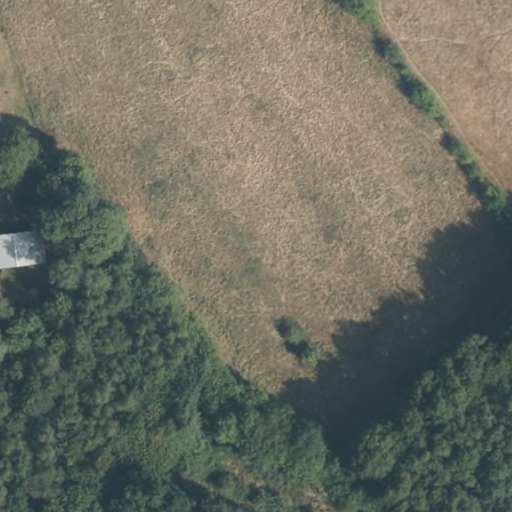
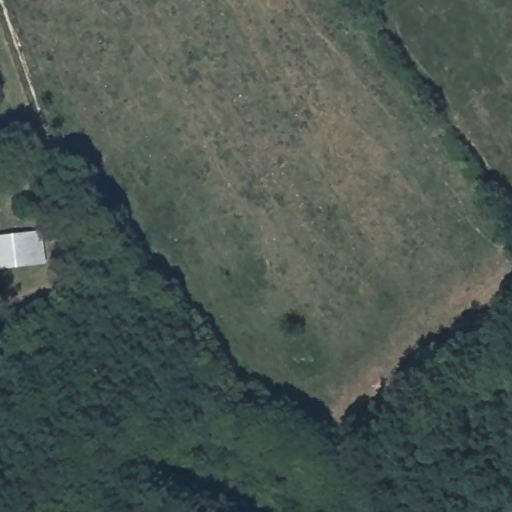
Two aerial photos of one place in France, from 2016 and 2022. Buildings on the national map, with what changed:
unchanged [(45,257),(21,266),(12,241),(36,233),(45,257)]

